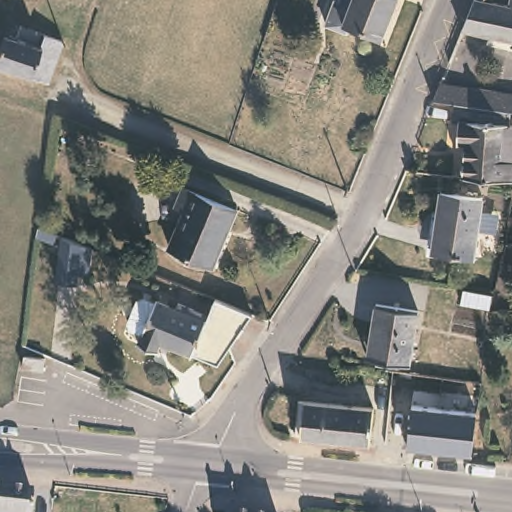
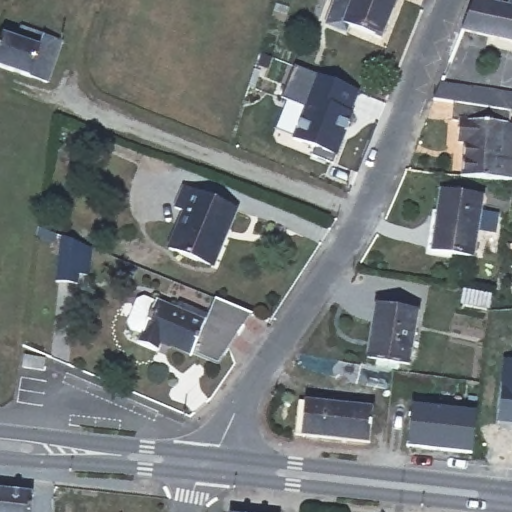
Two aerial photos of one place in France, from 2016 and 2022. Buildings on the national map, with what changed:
unchanged [(328,20),(331,12),(336,0),(398,0),(384,34),(351,20),(348,27),(328,20)]
unchanged [(470,0),(493,0),(492,0),(510,4),(510,0),(512,0),(512,37),(459,26),(470,0)]
unchanged [(63,37),(48,80),(0,65),(0,32),(1,29),(21,35),(25,24),(63,37)]
new [(361,92),(353,110),(354,113),(335,165),(313,156),(316,147),(293,139),(305,107),(284,100),(297,68),(361,92)]
unchanged [(512,113),(506,111),(449,104),(430,101),(438,81),(512,91),(512,113)]
unchanged [(500,163),(512,164),(512,184),(500,184),(457,180),(461,145),(454,145),(457,121),(447,120),(449,104),(506,111),(500,163)]
unchanged [(239,212),(229,233),(225,231),(208,266),(167,249),(180,220),(185,210),(177,205),(185,185),(239,212)]
unchanged [(482,193),(475,252),(430,245),(438,187),(482,193)]
unchanged [(64,236),(87,242),(81,285),(57,281),(64,236)]
unchanged [(201,320),(210,297),(247,313),(224,370),(159,342),(154,353),(135,345),(139,335),(128,330),(125,323),(133,303),(140,298),(154,304),(155,301),(201,320)]
unchanged [(411,310),(405,366),(361,360),(368,305),(411,310)]
unchanged [(372,409),(367,444),(292,435),(297,400),(372,409)]
unchanged [(412,406),(477,414),(472,452),(408,447),(412,406)]
unchanged [(27,512),(0,512),(0,486),(30,489),(27,512)]

